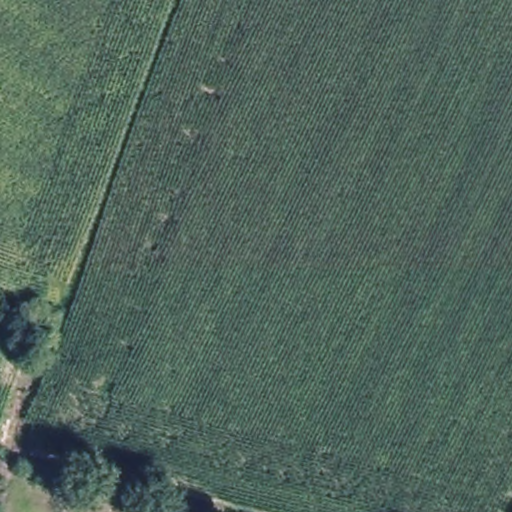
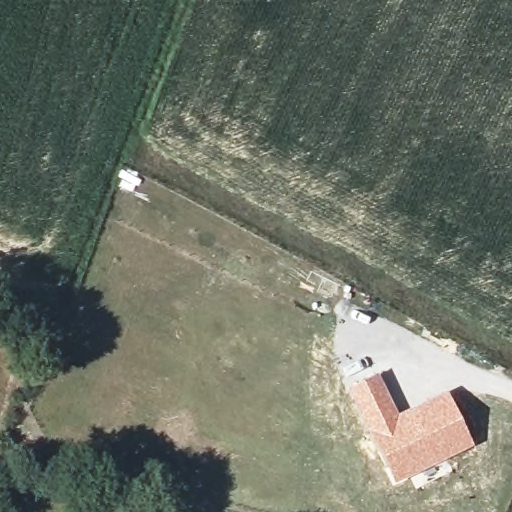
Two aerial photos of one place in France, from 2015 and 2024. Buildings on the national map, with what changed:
new [(377,372),(398,413),(446,390),(473,445),(393,485),(345,389),(377,372)]

